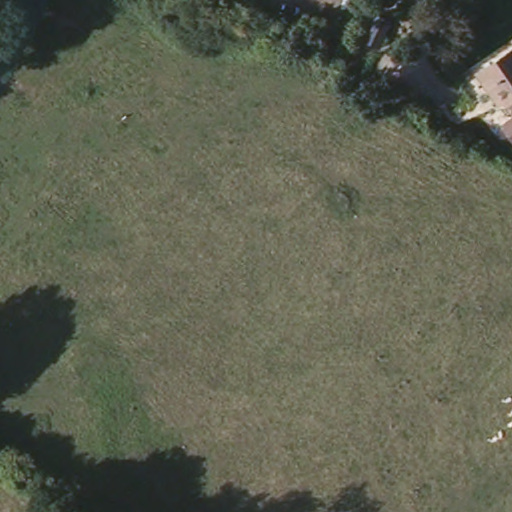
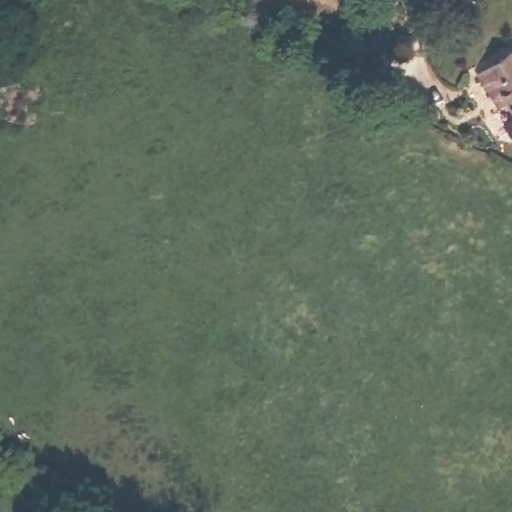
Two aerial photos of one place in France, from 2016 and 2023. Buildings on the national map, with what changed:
unchanged [(390,29),(399,0),(410,0),(417,3),(408,32),(390,29)]
unchanged [(507,117),(477,66),(512,46),(512,142),(498,123),(507,117)]

